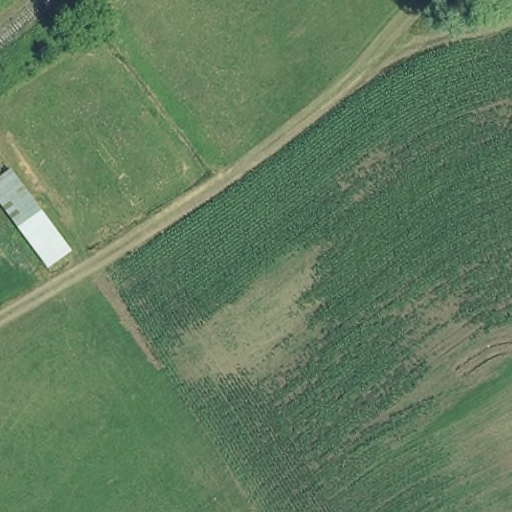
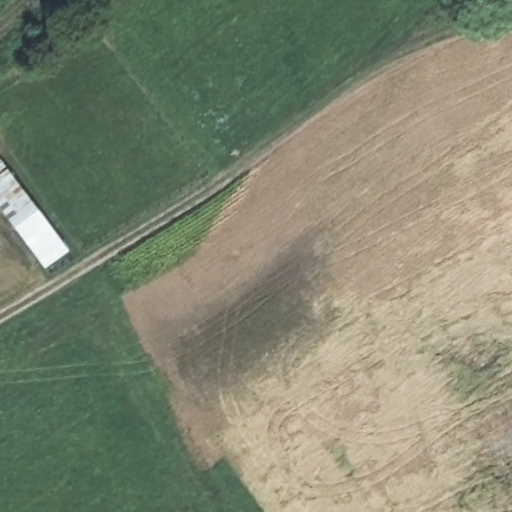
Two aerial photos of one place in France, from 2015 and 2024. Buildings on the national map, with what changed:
unchanged [(41,263),(0,206),(0,169),(7,162),(68,245),(41,263)]

